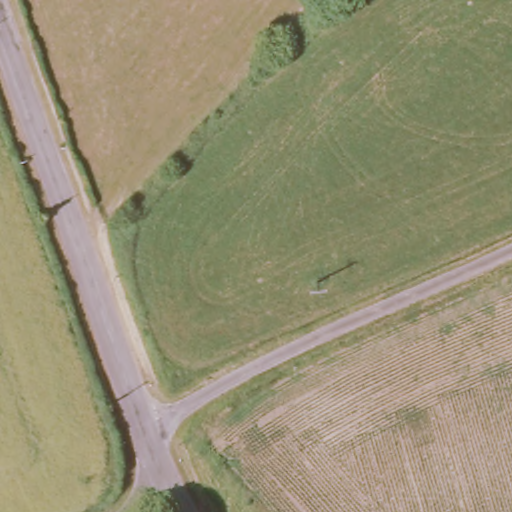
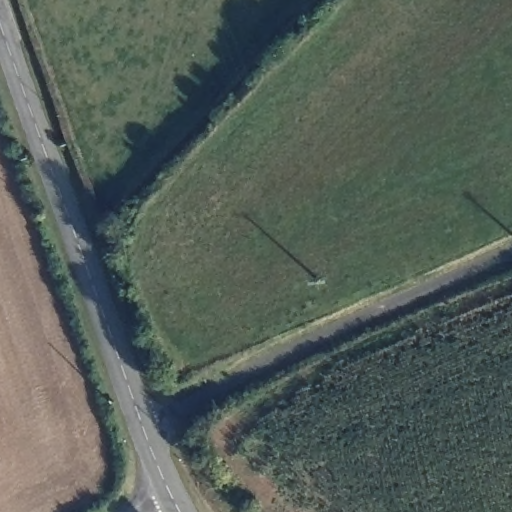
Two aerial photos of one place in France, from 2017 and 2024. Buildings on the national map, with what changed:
unchanged [(184,381),(175,383),(173,377),(183,374),(184,381)]

